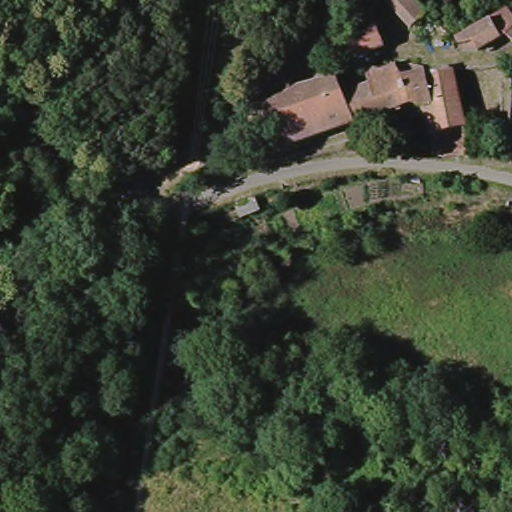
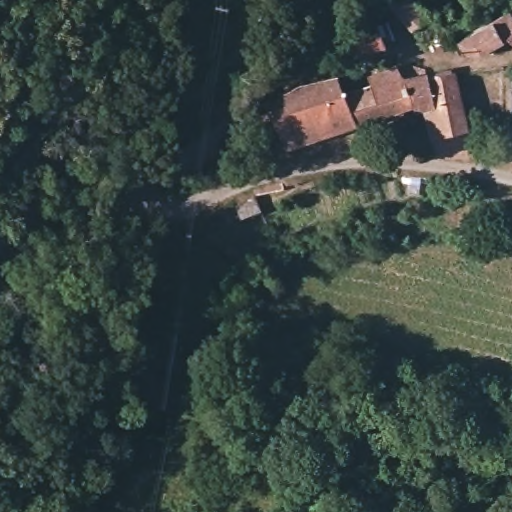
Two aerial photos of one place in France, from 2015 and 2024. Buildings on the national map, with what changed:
unchanged [(398,0),(412,0),(430,14),(419,30),(402,19),(391,9),(398,0)]
unchanged [(512,11),(512,35),(507,39),(504,42),(493,47),(483,51),(477,54),(472,55),(464,57),(460,58),(456,49),(472,38),(478,33),(507,6),(512,11)]
unchanged [(352,19),(355,16),(367,10),(370,13),(372,19),(388,49),(357,60),(340,37),(357,30),(352,19)]
unchanged [(507,39),(512,35),(512,44),(507,39)]
unchanged [(437,144),(434,131),(432,121),(429,118),(424,116),(418,115),(359,134),(352,109),(350,104),(382,94),(385,84),(387,84),(402,79),(406,89),(434,80),(437,88),(455,82),(459,79),(468,120),(470,129),(472,158),(441,167),(440,154),(437,144)]
unchanged [(334,89),(340,88),(345,88),(350,104),(352,109),(359,134),(287,155),(284,145),(273,123),(267,110),(305,91),(317,90),(334,89)]

